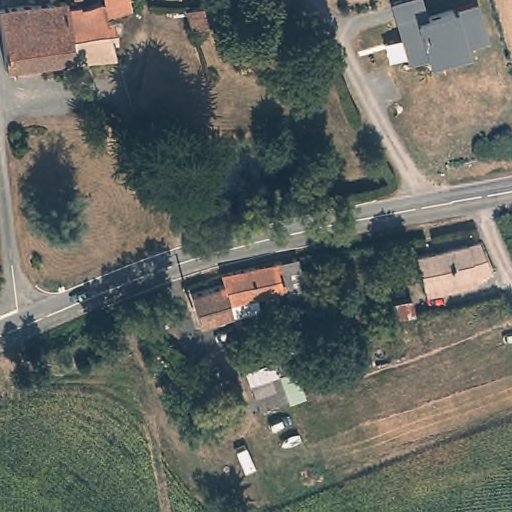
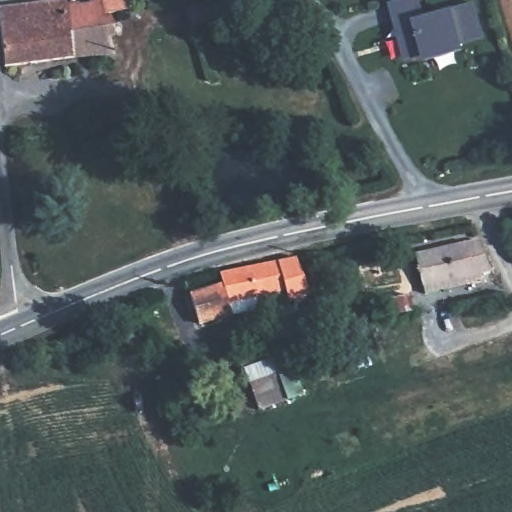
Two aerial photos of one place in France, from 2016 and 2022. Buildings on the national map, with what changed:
unchanged [(43,6),(86,0),(133,0),(136,14),(110,17),(116,61),(82,65),(82,62),(0,69),(0,9),(43,2),(43,6)]
unchanged [(391,6),(411,0),(420,0),(424,14),(453,6),(454,10),(475,4),(486,39),(406,61),(391,6)]
unchanged [(200,35),(190,20),(215,4),(225,22),(200,35)]
unchanged [(418,258),(447,252),(475,247),(482,280),(453,285),(425,291),(418,258)]
unchanged [(240,306),(235,285),(232,274),(290,264),(296,295),(240,306)]
unchanged [(244,318),(211,325),(203,293),(235,285),(240,306),(244,318)]
unchanged [(281,343),(299,394),(262,407),(242,355),(281,343)]

